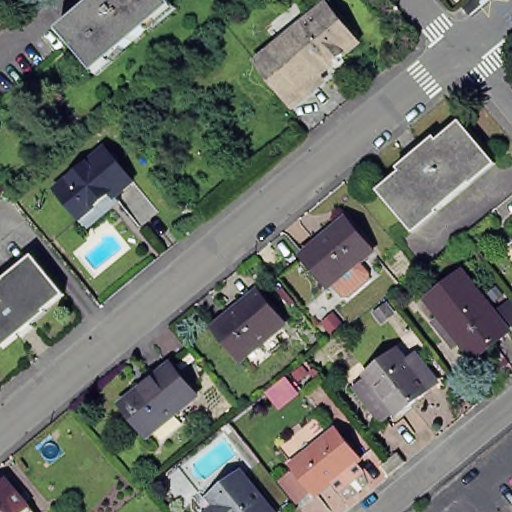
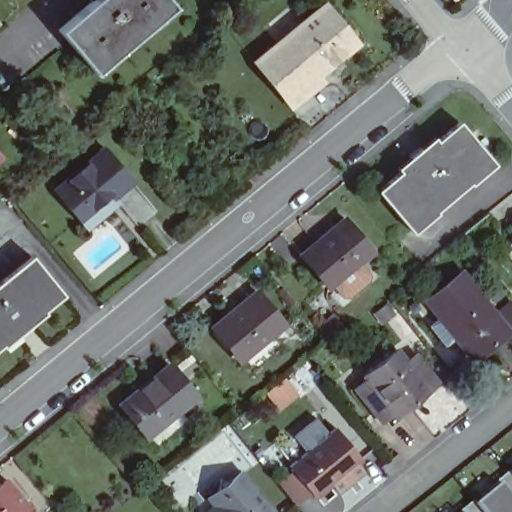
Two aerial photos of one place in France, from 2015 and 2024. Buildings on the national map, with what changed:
unchanged [(176,8),(97,74),(60,31),(98,0),(169,0),(176,8)]
unchanged [(359,47),(288,104),(256,65),(329,8),(359,47)]
unchanged [(410,164),(407,160),(417,152),(421,155),(456,126),(491,167),(437,212),(403,170),(410,164)]
unchanged [(62,200),(56,193),(75,177),(108,152),(113,159),(133,185),(113,202),(110,198),(99,206),(80,222),(62,200)]
unchanged [(437,212),(410,234),(376,193),(403,170),(437,212)]
unchanged [(301,254),(305,250),(345,218),(372,251),(359,262),(371,277),(344,298),(332,283),(327,287),(301,254)]
unchanged [(33,326),(34,328),(23,338),(20,336),(0,352),(0,286),(33,258),(65,300),(33,326)]
unchanged [(512,328),(512,329),(479,357),(461,335),(454,341),(436,321),(444,314),(432,298),(464,271),(512,328)]
unchanged [(244,363),(216,330),(259,296),(262,293),(289,326),(286,329),(244,363)]
unchanged [(438,391),(406,416),(404,413),(393,420),(366,388),(377,380),(374,375),(406,351),(438,391)]
unchanged [(120,406),(154,379),(168,367),(194,401),(181,412),(147,439),(120,406)]
unchanged [(365,459),(319,497),(294,465),(339,427),(365,459)]
unchanged [(387,475),(379,467),(396,453),(404,462),(387,475)]
new [(511,475),(512,477),(512,512),(481,512),(474,504),(496,487),(494,482),(508,471),(511,475)]
unchanged [(215,512),(228,501),(221,491),(224,479),(233,480),(243,473),(273,512),(215,512)]
new [(511,475),(512,475),(512,477),(511,475)]
unchanged [(36,511),(35,512),(0,512),(0,486),(9,478),(36,511)]
new [(474,504),(481,512),(459,512),(473,501),(474,504)]

